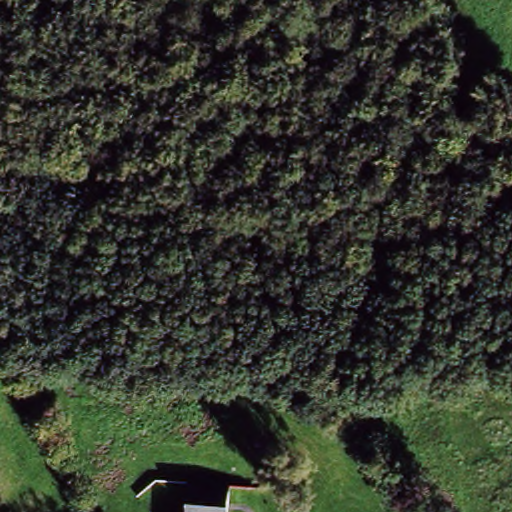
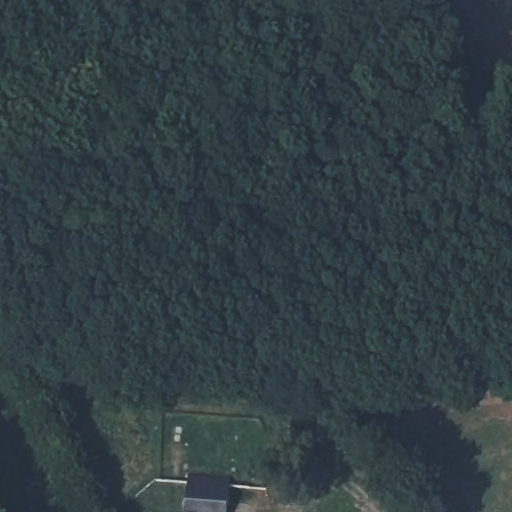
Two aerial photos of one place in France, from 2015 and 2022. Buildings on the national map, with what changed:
unchanged [(220,483),(219,512),(178,512),(177,485),(220,483)]

